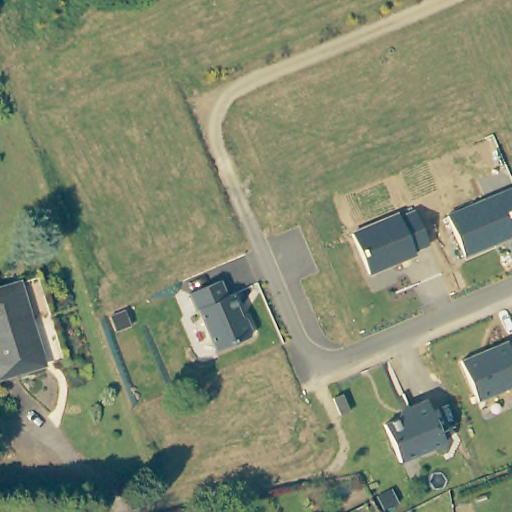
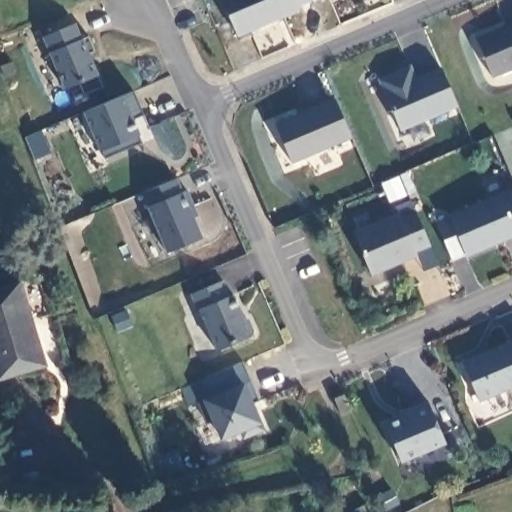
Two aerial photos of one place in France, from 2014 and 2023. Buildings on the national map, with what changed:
new [(309,0),(296,5),(298,11),(238,35),(223,0),(309,0)]
new [(77,21),(102,85),(83,94),(79,83),(65,90),(41,36),(77,21)]
new [(492,76),(476,36),(512,21),(512,68),(492,76)]
new [(399,132),(377,81),(411,64),(417,76),(441,66),(457,107),(399,132)]
new [(143,114),(133,119),(140,136),(142,141),(105,156),(100,150),(84,112),(134,90),(143,114)]
new [(335,99),(351,137),(292,162),(276,124),(335,99)]
new [(183,191),(187,189),(197,214),(192,216),(202,238),(167,253),(147,206),(142,193),(177,178),(183,191)]
unchanged [(447,217),(512,190),(512,238),(465,258),(447,217)]
unchanged [(397,213),(400,218),(413,211),(428,245),(415,250),(417,256),(370,276),(352,233),(397,213)]
unchanged [(0,379),(0,288),(19,282),(45,365),(0,379)]
unchanged [(226,298),(230,296),(237,311),(234,312),(237,319),(240,318),(244,320),(250,333),(248,338),(214,352),(197,312),(195,312),(187,296),(219,282),(226,298)]
unchanged [(477,402),(458,362),(512,339),(512,387),(477,402)]
new [(242,361),(260,401),(254,405),(261,423),(264,430),(240,439),(237,433),(219,441),(212,427),(207,428),(195,399),(203,396),(197,380),(242,361)]
unchanged [(340,396),(347,412),(338,416),(331,400),(340,396)]
unchanged [(447,453),(403,472),(387,436),(413,424),(411,418),(428,411),(447,453)]

